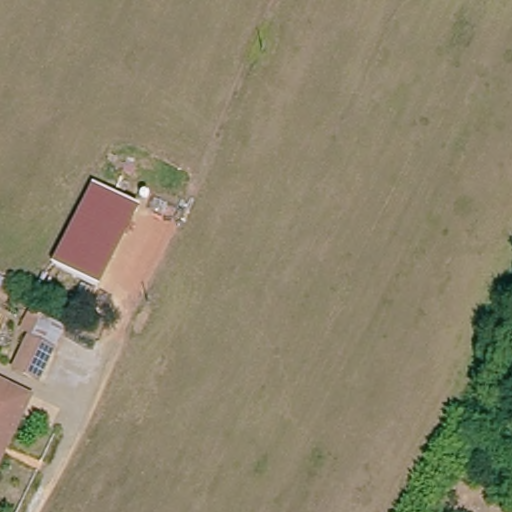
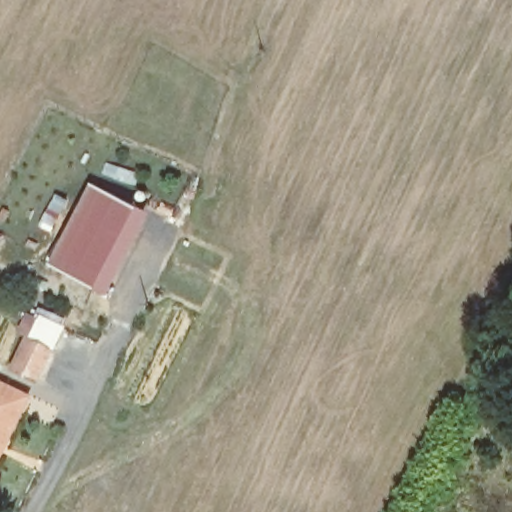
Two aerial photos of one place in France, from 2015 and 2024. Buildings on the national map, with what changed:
unchanged [(51,262),(92,181),(137,203),(96,285),(51,262)]
unchanged [(35,327),(60,340),(57,344),(42,373),(18,359),(32,332),(35,327)]
unchanged [(34,399),(8,450),(1,446),(0,448),(0,381),(34,399)]

